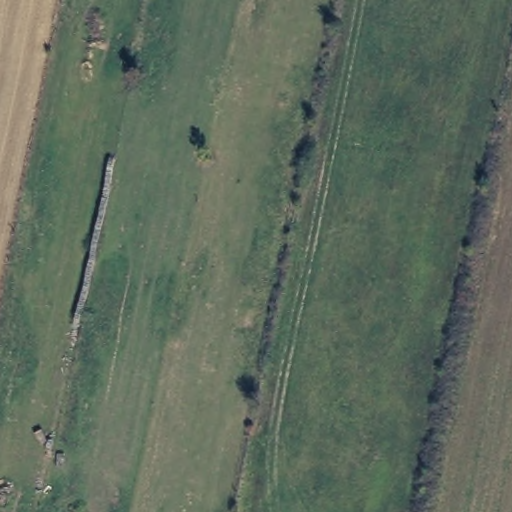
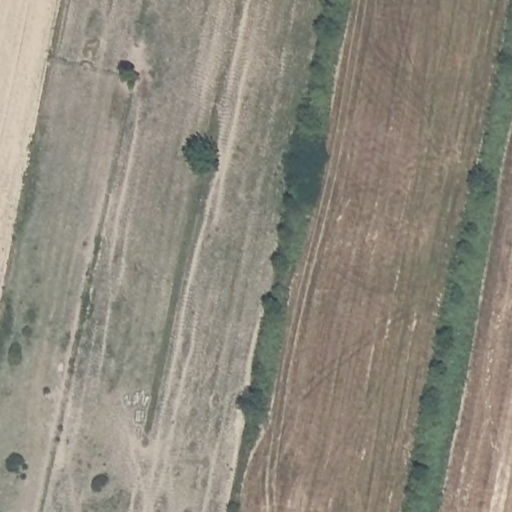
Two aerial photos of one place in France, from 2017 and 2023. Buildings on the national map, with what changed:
[]

